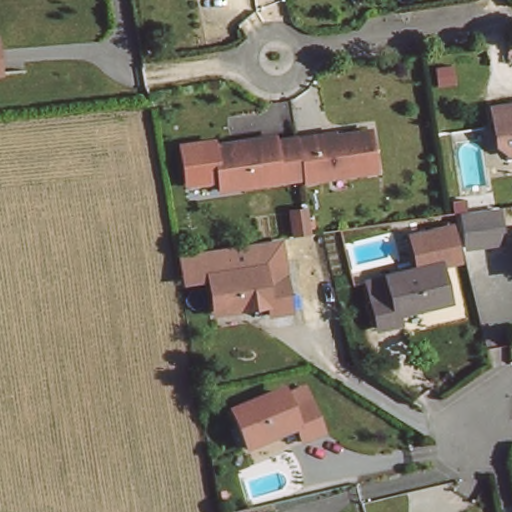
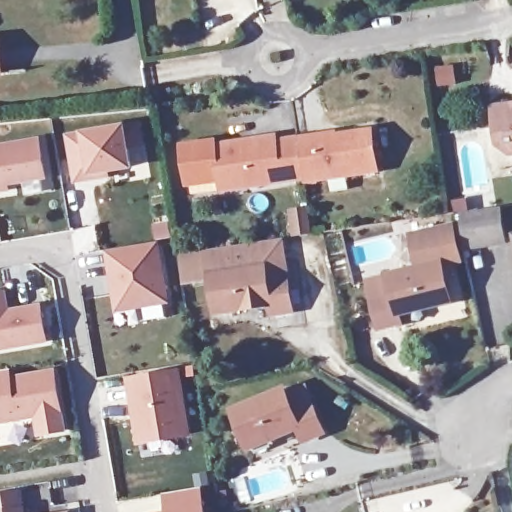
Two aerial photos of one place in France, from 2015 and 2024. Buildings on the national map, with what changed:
unchanged [(0,73),(0,34),(1,34),(6,72),(0,73)]
new [(457,66),(458,86),(438,88),(437,68),(457,66)]
unchanged [(504,152),(497,147),(493,142),(488,109),(512,103),(512,155),(504,152)]
new [(142,125),(144,148),(128,150),(129,169),(107,171),(108,177),(73,179),(70,139),(81,138),(81,131),(142,125)]
unchanged [(375,125),(380,167),(307,177),(300,135),(375,125)]
unchanged [(226,187),(218,145),(245,140),(281,134),(282,139),(300,135),(307,177),(226,187)]
new [(44,181),(8,185),(8,192),(0,194),(0,144),(39,139),(44,181)]
unchanged [(218,145),(226,187),(218,188),(216,179),(188,182),(183,150),(218,145)]
unchanged [(497,219),(502,254),(471,258),(466,224),(497,219)]
unchanged [(409,233),(454,223),(464,261),(447,264),(445,256),(418,263),(409,233)]
unchanged [(184,284),(181,253),(286,239),(289,266),(271,269),(269,256),(207,267),(208,280),(184,284)]
new [(103,251),(159,242),(169,307),(114,314),(103,251)]
unchanged [(208,280),(207,267),(269,256),(271,269),(289,266),(295,316),(266,319),(265,308),(212,315),(208,280)]
unchanged [(404,314),(382,319),(371,273),(418,263),(444,256),(447,264),(453,291),(403,305),(404,314)]
new [(8,311),(41,310),(43,344),(0,347),(0,295),(7,295),(8,311)]
new [(10,376),(55,372),(60,430),(37,432),(35,419),(0,422),(0,371),(10,370),(10,376)]
new [(125,380),(175,372),(186,437),(136,446),(125,380)]
unchanged [(299,427),(249,449),(233,413),(283,390),(293,407),(311,400),(326,432),(306,441),(299,427)]
new [(163,493),(201,490),(203,512),(164,512),(163,493)]
new [(23,512),(0,512),(0,493),(21,492),(23,512)]

